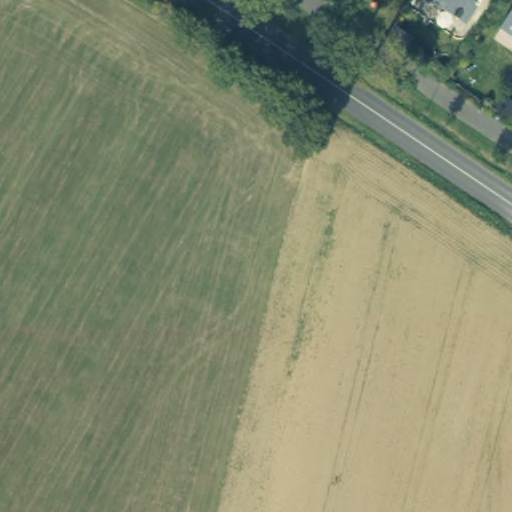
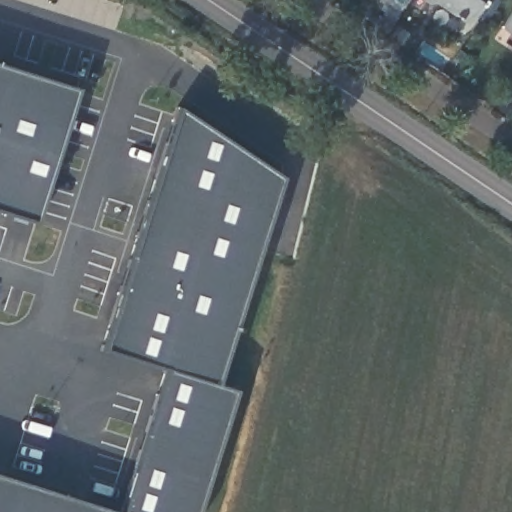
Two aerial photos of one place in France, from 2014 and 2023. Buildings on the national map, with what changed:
unchanged [(473,23),(441,2),(435,3),(430,0),(489,0),(473,23)]
unchanged [(501,25),(512,11),(512,33),(501,25)]
new [(35,222),(0,212),(0,65),(77,89),(35,222)]
new [(102,351),(179,109),(280,179),(215,384),(232,392),(196,512),(122,512),(167,371),(102,351)]
new [(114,512),(0,512),(0,475),(114,512)]

